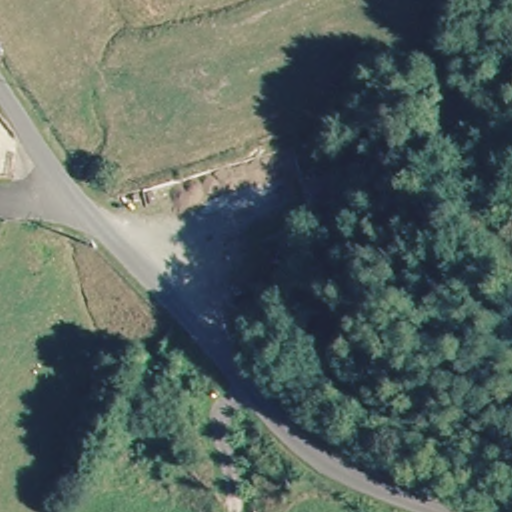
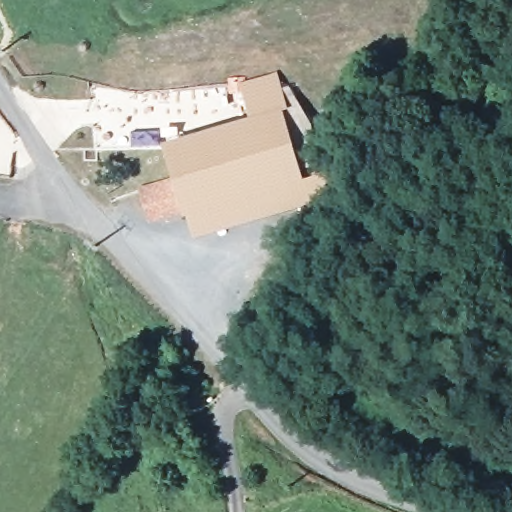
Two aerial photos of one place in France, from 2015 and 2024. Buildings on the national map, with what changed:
new [(182,213),(147,223),(136,187),(171,176),(161,143),(248,118),(237,83),(276,72),(288,110),(281,111),(298,164),(330,155),(344,207),(311,217),(308,205),(192,240),(186,217),(184,218),(182,213)]

